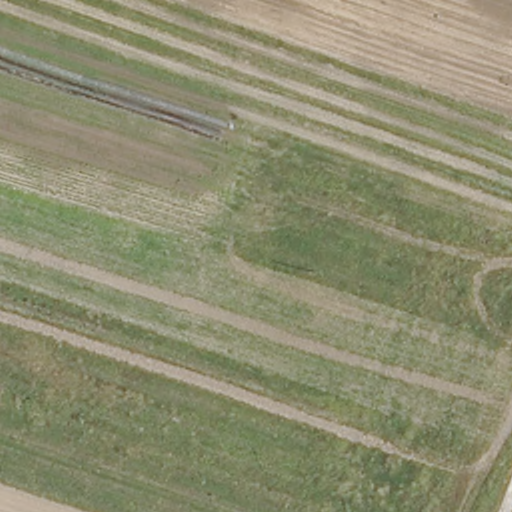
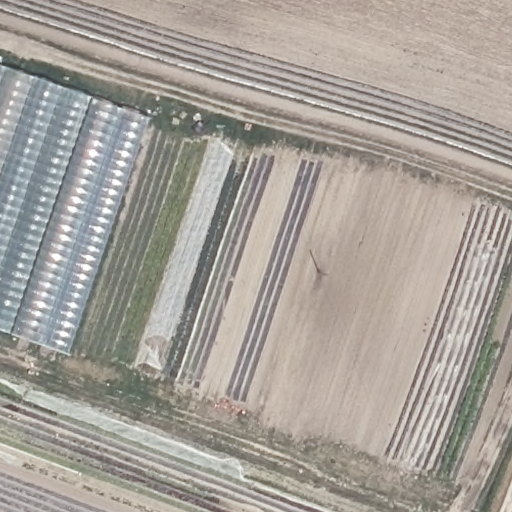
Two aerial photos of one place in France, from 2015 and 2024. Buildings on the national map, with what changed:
new [(0,331),(0,65),(146,117),(65,353),(0,331)]

